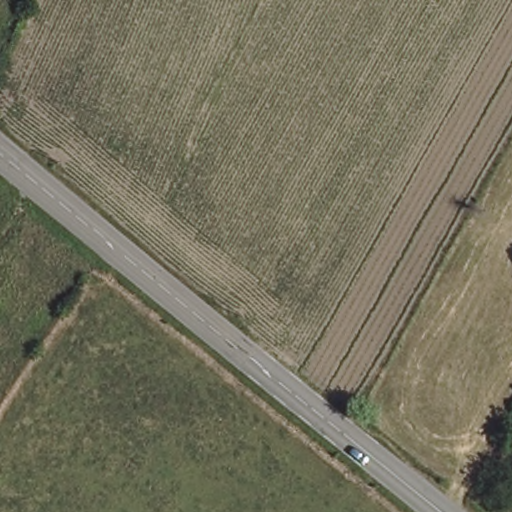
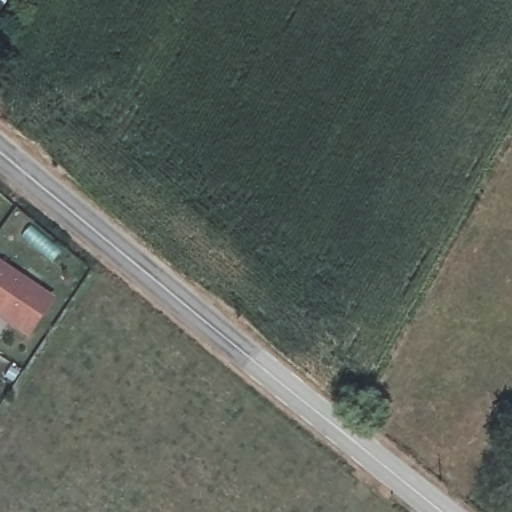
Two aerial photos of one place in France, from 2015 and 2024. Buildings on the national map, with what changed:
new [(46,294),(23,330),(3,317),(3,312),(0,311),(0,264),(46,294)]

